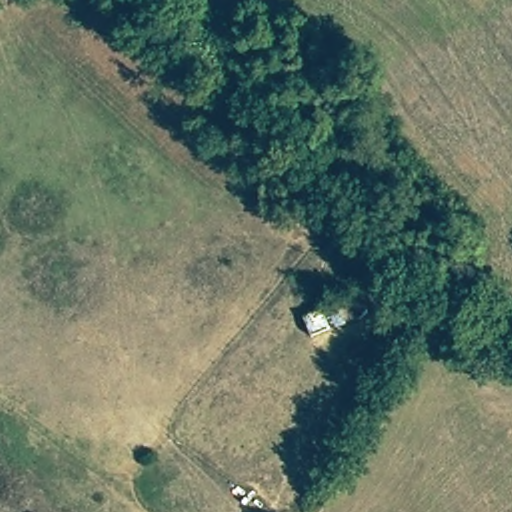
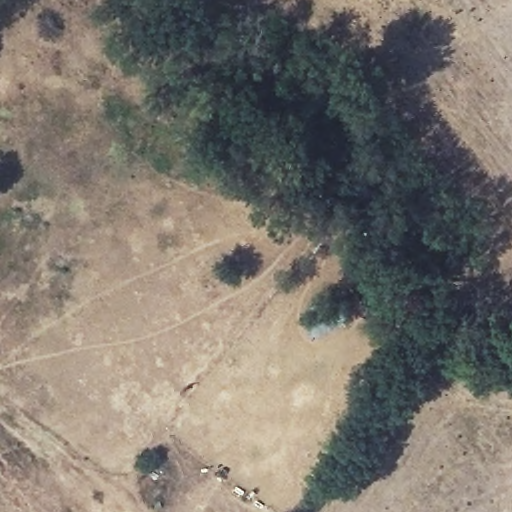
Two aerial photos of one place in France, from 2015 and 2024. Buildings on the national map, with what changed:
unchanged [(333,302),(358,295),(364,313),(342,322),(333,302)]
unchanged [(299,312),(322,304),(330,327),(306,334),(299,312)]

